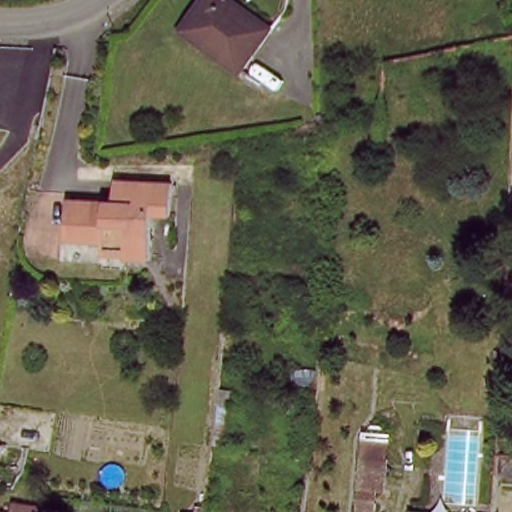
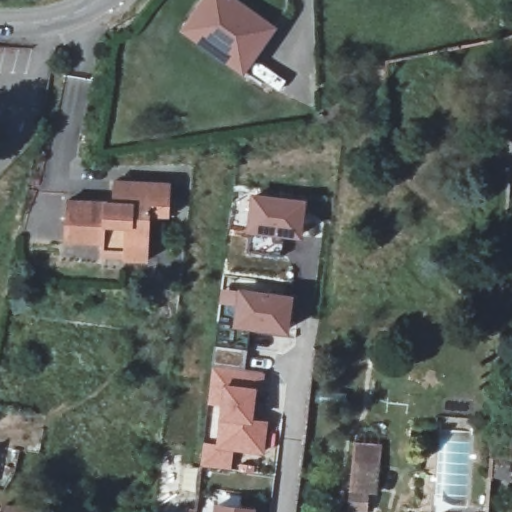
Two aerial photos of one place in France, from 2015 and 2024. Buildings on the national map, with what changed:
unchanged [(180,35),(206,0),(231,0),(277,26),(243,78),(180,35)]
unchanged [(42,130),(44,121),(49,122),(47,131),(42,130)]
unchanged [(66,241),(71,201),(118,207),(119,187),(174,194),(165,270),(140,266),(63,256),(66,241)]
new [(306,201),(301,239),(281,237),(279,255),(247,252),(247,231),(253,195),(306,201)]
new [(217,445),(219,419),(222,405),(207,403),(213,358),(218,323),(233,325),(239,288),(295,296),(291,333),(249,329),(244,370),(263,374),(258,389),(253,418),(270,421),(264,455),(235,450),(232,470),(202,466),(205,442),(217,445)]
unchanged [(351,512),(356,457),(378,459),(374,512),(351,512)]
unchanged [(48,507),(47,512),(0,512),(3,497),(48,507)]
new [(249,512),(219,512),(220,508),(249,512)]

